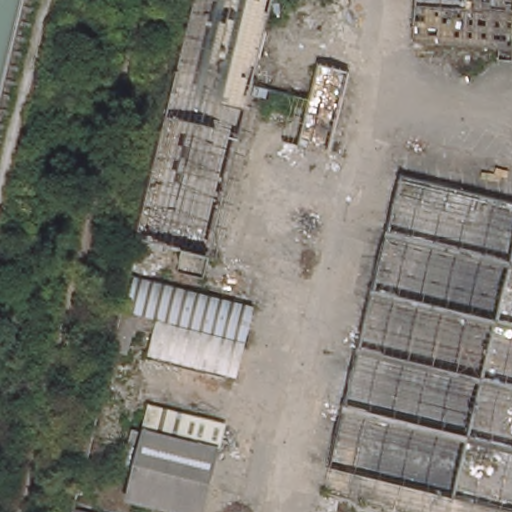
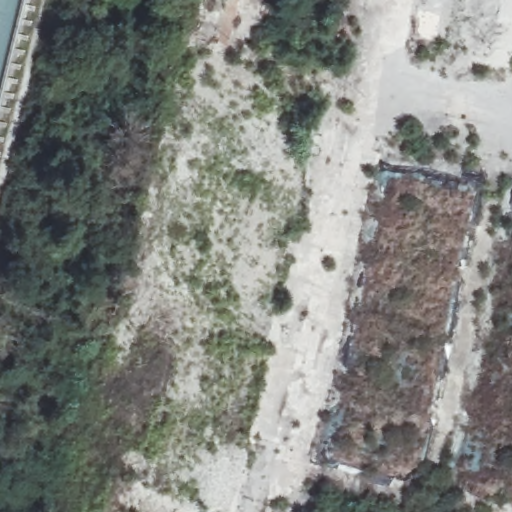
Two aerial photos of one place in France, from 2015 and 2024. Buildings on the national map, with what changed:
demolished [(170,97),(194,0),(270,0),(249,90),(246,100),(242,114),(170,97)]
demolished [(498,63),(499,49),(416,43),(418,0),(512,0),(512,64),(498,63)]
demolished [(322,67),(354,74),(339,135),(334,157),(303,149),(307,128),(314,104),(322,67)]
demolished [(242,114),(207,259),(135,241),(170,97),(242,114)]
demolished [(486,512),(332,477),(401,183),(512,210),(512,512),(486,512)]
demolished [(155,330),(136,325),(129,351),(112,346),(122,307),(124,308),(132,276),(252,306),(244,339),(172,320),(171,324),(246,342),(237,376),(149,353),(155,330)]
demolished [(183,512),(132,498),(145,447),(132,443),(136,427),(145,430),(152,403),(227,423),(204,512),(183,512)]
demolished [(75,512),(75,511),(77,512),(75,512)]

